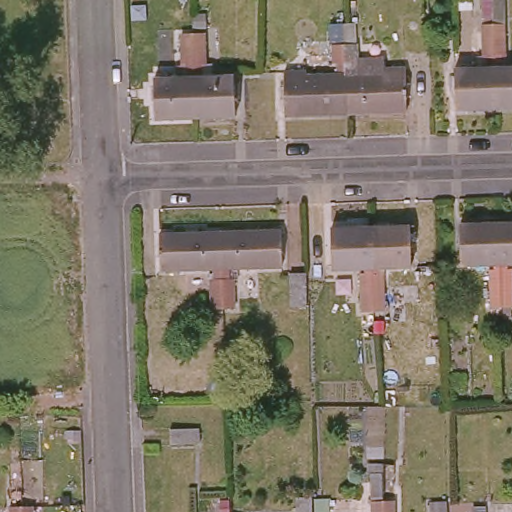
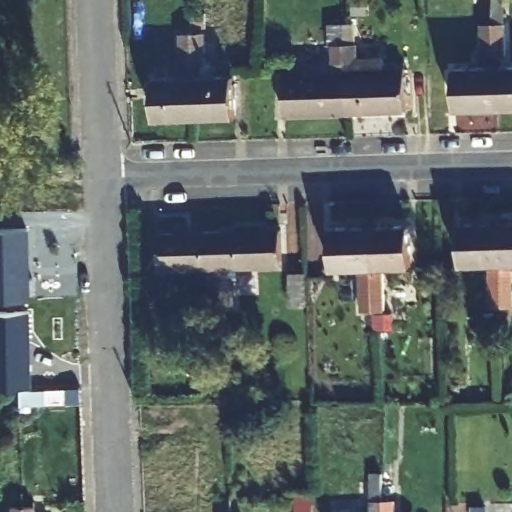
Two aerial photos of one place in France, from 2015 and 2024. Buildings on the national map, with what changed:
unchanged [(488,60),(481,60),(481,29),(493,28),(504,28),(505,60),(499,60),(500,65),(493,65),(488,66),(488,60)]
unchanged [(191,68),(184,68),(183,34),(195,34),(206,33),(207,67),(202,67),(203,72),(196,73),(191,73),(191,68)]
unchanged [(338,71),(338,64),(332,64),(332,48),(345,47),(355,47),(356,64),(350,64),(350,70),(346,71),(338,71)]
unchanged [(346,74),(381,73),(381,68),(403,68),(405,111),(347,113),(346,74)]
unchanged [(512,70),(512,110),(495,110),(494,71),(512,70)]
unchanged [(347,113),(284,114),(282,71),(306,71),(306,75),(346,74),(347,113)]
unchanged [(453,112),(452,73),(494,71),(495,110),(453,112)]
unchanged [(197,78),(236,77),(238,116),(198,118),(197,78)]
unchanged [(154,119),(154,79),(197,78),(198,118),(154,119)]
unchanged [(512,223),(512,263),(504,264),(505,275),(511,275),(512,306),(499,307),(499,264),(498,224),(512,223)]
unchanged [(499,307),(489,307),(488,275),(494,275),(494,264),(459,265),(458,225),(498,224),(499,264),(499,307)]
unchanged [(413,226),(413,266),(381,267),(381,278),(386,278),(387,309),(376,309),(375,267),(374,227),(413,226)]
unchanged [(375,267),(376,309),(364,309),(364,279),(370,279),(370,267),(333,268),(333,228),(374,227),(375,267)]
new [(29,228),(30,299),(0,300),(0,229),(29,228)]
unchanged [(220,274),(220,268),(219,231),(279,229),(280,266),(234,268),(235,280),(230,280),(231,309),(221,309),(220,274)]
unchanged [(220,268),(220,274),(221,309),(208,309),(207,280),(214,280),(215,268),(156,271),(156,233),(219,231),(220,268)]
unchanged [(310,269),(311,301),(295,301),(294,270),(310,269)]
new [(32,386),(0,386),(0,311),(30,311),(32,386)]
unchanged [(204,447),(175,447),(175,431),(204,430),(204,447)]
unchanged [(381,473),(382,486),(382,503),(393,503),(393,512),(370,512),(370,474),(381,473)]
unchanged [(319,497),(334,496),(334,512),(303,512),(303,497),(319,497)]
unchanged [(433,512),(433,501),(450,500),(450,512),(433,512)]
unchanged [(19,505),(19,512),(7,512),(7,505),(19,505)]
unchanged [(32,505),(32,512),(19,512),(19,505),(32,505)]

